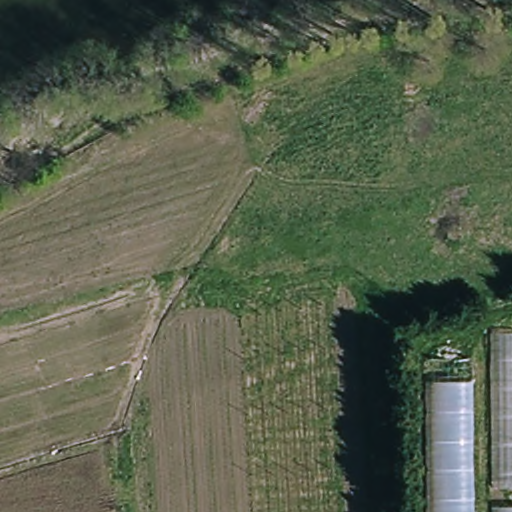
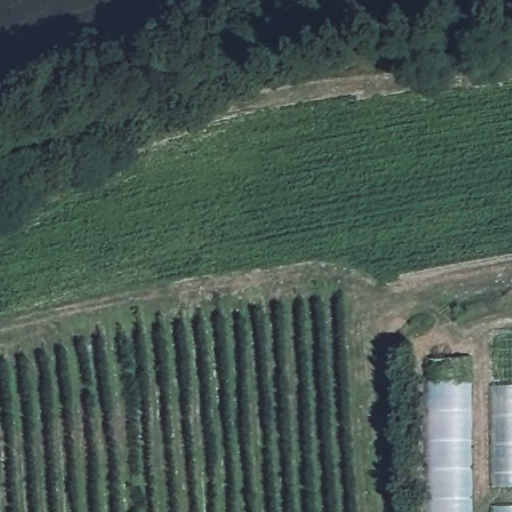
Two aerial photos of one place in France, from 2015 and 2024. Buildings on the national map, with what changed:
unchanged [(436,512),(433,367),(497,366),(498,333),(512,332),(512,512),(436,512)]

